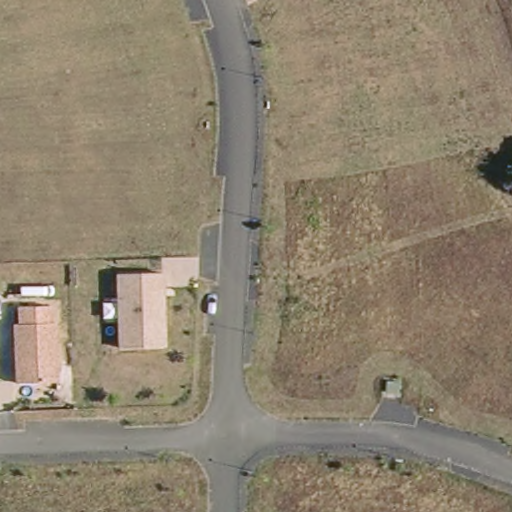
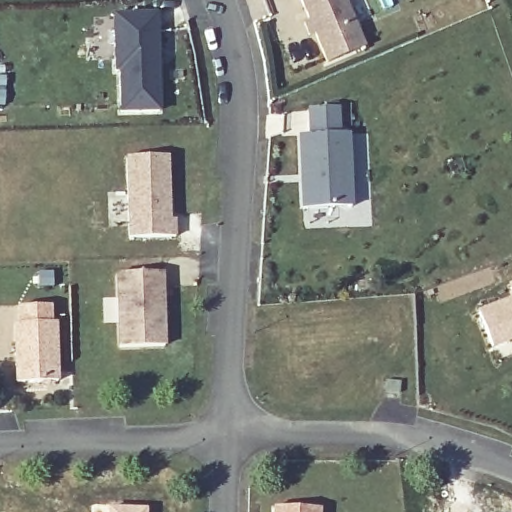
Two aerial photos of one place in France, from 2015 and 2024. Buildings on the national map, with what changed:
new [(326,65),(314,35),(309,38),(303,24),(308,21),(299,0),(346,0),(366,48),(326,65)]
new [(161,110),(122,111),(121,70),(117,70),(116,31),(116,14),(133,13),(159,12),(161,110)]
new [(312,133),(312,107),(340,106),(341,132),(351,132),(354,205),(305,207),(302,134),(312,133)]
new [(170,157),(172,221),(177,221),(177,237),(131,239),(129,159),(170,157)]
unchanged [(117,272),(164,270),(168,346),(120,348),(117,272)]
new [(504,286),(512,283),(512,341),(492,349),(478,310),(509,298),(504,286)]
unchanged [(14,323),(20,322),(19,303),(52,301),(53,320),(59,320),(62,380),(16,382),(14,323)]
new [(148,507),(147,512),(107,512),(108,506),(148,507)]
new [(323,509),(323,512),(277,512),(277,507),(323,509)]

